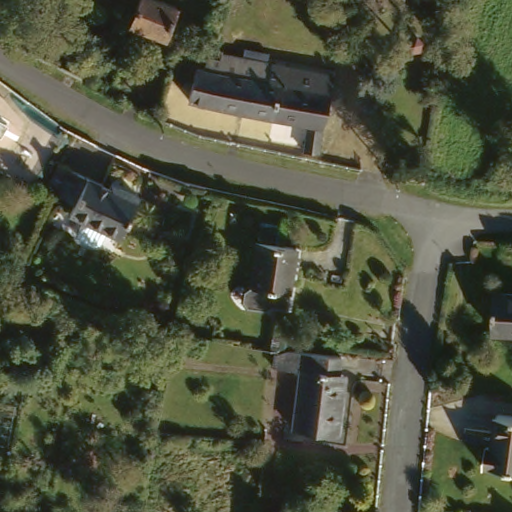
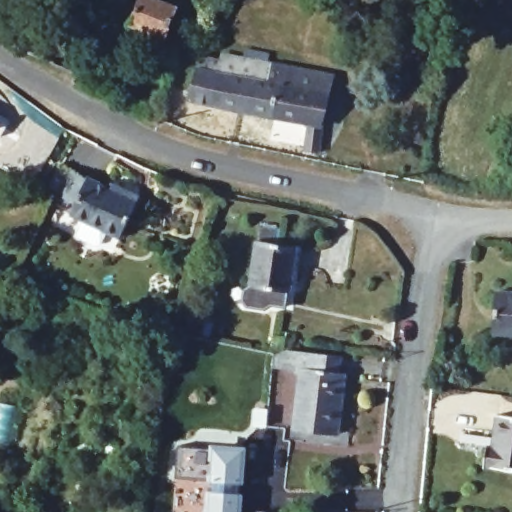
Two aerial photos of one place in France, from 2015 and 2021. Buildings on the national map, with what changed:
unchanged [(171,36),(138,25),(136,24),(145,0),(172,0),(182,3),(171,36)]
unchanged [(7,22),(18,27),(12,43),(0,39),(7,22)]
unchanged [(173,47),(178,34),(190,39),(189,41),(185,52),(173,47)]
unchanged [(193,94),(200,63),(207,64),(210,51),(224,54),(221,67),(282,79),(283,73),(285,74),(287,68),(289,69),(290,63),(309,67),(336,73),(333,88),(330,105),(329,106),(326,123),(325,148),(311,145),(312,118),(193,94)]
unchanged [(9,135),(0,130),(0,109),(4,111),(2,115),(16,122),(9,135)]
unchanged [(136,242),(85,219),(90,209),(69,201),(84,172),(103,181),(134,195),(136,190),(152,196),(141,228),(136,242)]
unchanged [(292,292),(290,308),(276,306),(270,311),(252,309),(247,303),(249,292),(254,288),(259,256),(261,243),(300,248),(298,259),(294,293),(292,292)]
unchanged [(32,293),(35,285),(49,292),(45,300),(32,293)]
unchanged [(512,332),(503,331),(505,288),(509,289),(512,289),(512,332)]
unchanged [(54,294),(77,304),(72,315),(48,304),(54,294)]
unchanged [(121,318),(119,326),(109,323),(111,315),(121,318)]
unchanged [(277,346),(287,345),(291,344),(346,350),(343,371),(350,372),(343,431),(297,426),(304,366),(275,363),(277,346)]
unchanged [(491,442),(498,444),(503,411),(512,412),(512,467),(487,463),(491,442)]
new [(237,512),(171,512),(176,444),(242,450),(237,512)]
unchanged [(283,510),(283,512),(263,512),(263,509),(283,510)]

